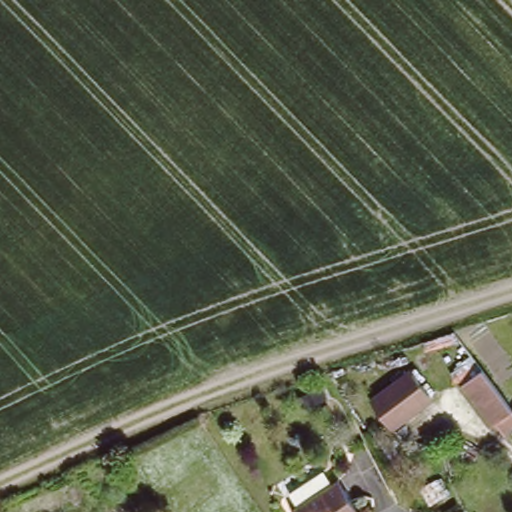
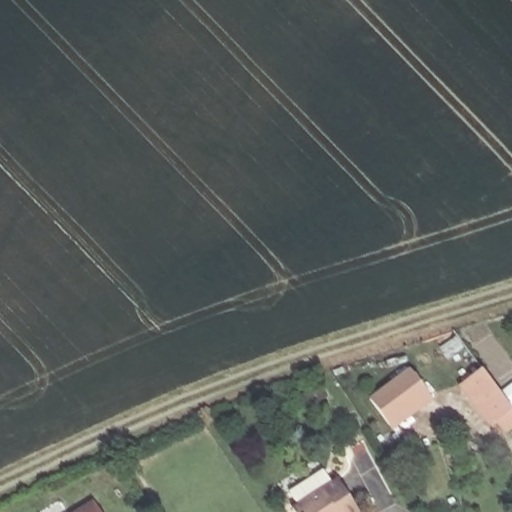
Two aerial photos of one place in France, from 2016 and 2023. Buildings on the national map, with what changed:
unchanged [(502,434),(492,418),(487,421),(461,382),(481,368),(509,407),(512,411),(512,428),(502,434)]
unchanged [(410,370),(428,395),(390,423),(372,400),(410,370)]
unchanged [(315,490),(337,476),(359,510),(355,512),(329,512),(315,490)]
unchanged [(329,512),(294,512),(290,506),(315,490),(329,512)]
new [(93,501),(100,512),(75,512),(93,501)]

